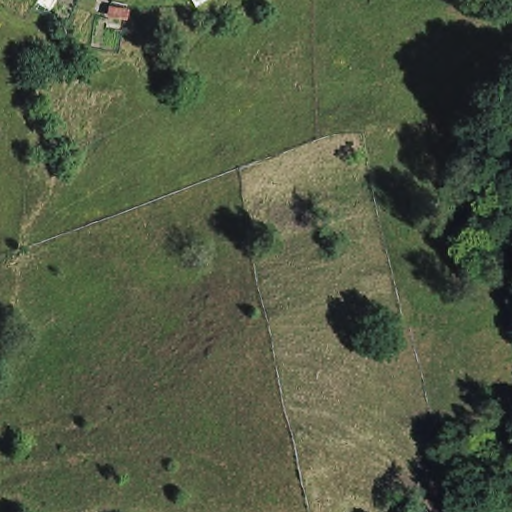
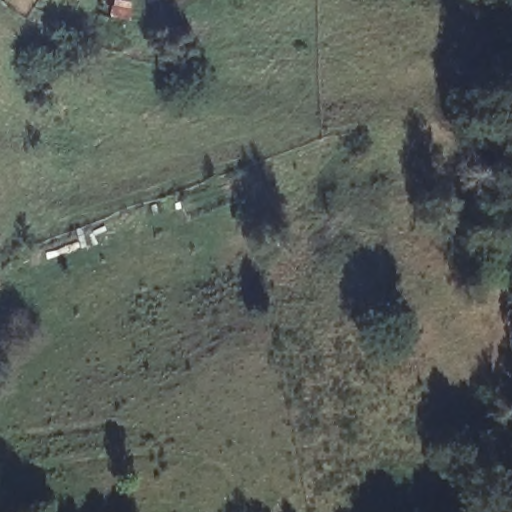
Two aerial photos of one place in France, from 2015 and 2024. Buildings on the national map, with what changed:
unchanged [(197,0),(203,0),(199,3),(197,0)]
unchanged [(128,9),(127,14),(110,13),(111,7),(128,9)]

